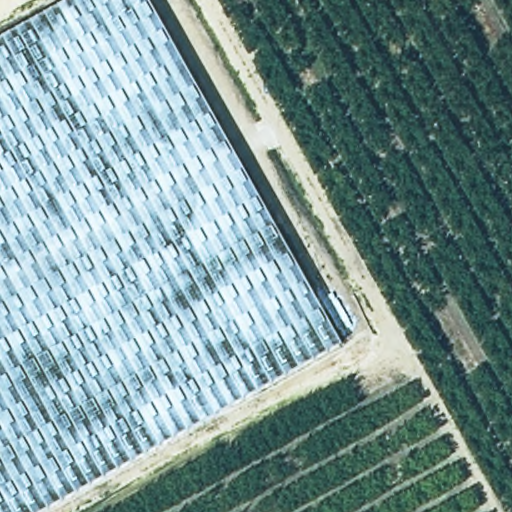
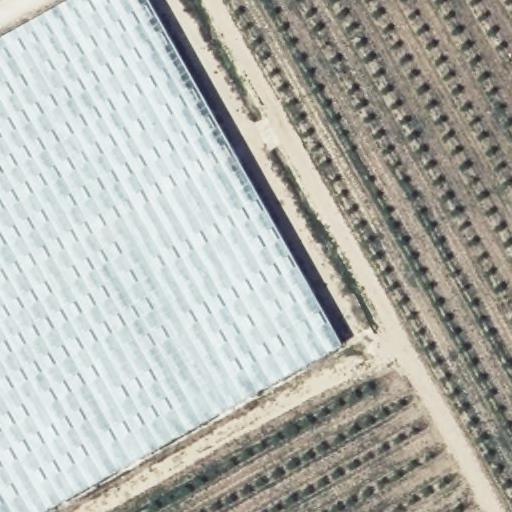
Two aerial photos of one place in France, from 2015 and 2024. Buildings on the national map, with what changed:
unchanged [(333,347),(37,512),(0,512),(0,34),(61,0),(137,0),(333,347)]

